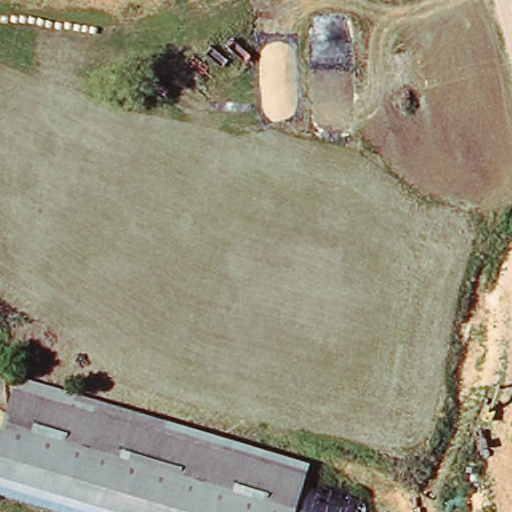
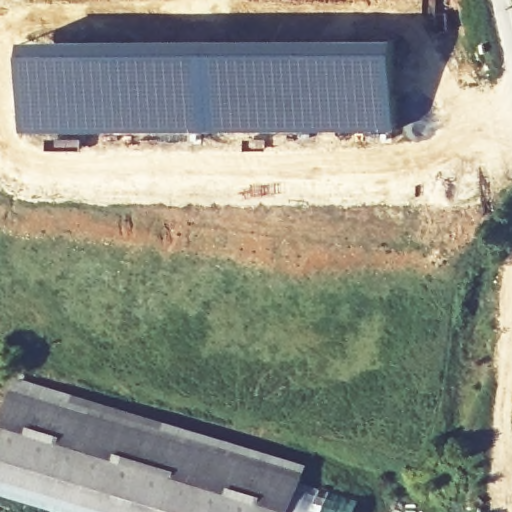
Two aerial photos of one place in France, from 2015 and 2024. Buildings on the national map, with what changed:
new [(29,39),(92,36),(398,36),(400,130),(145,128),(29,130),(29,39)]
unchanged [(26,394),(12,390),(17,374),(309,464),(303,484),(26,394)]
unchanged [(26,394),(303,484),(316,488),(362,503),(359,512),(185,512),(0,454),(0,425),(6,406),(12,390),(26,394)]
unchanged [(185,512),(65,512),(0,492),(0,454),(185,512)]

